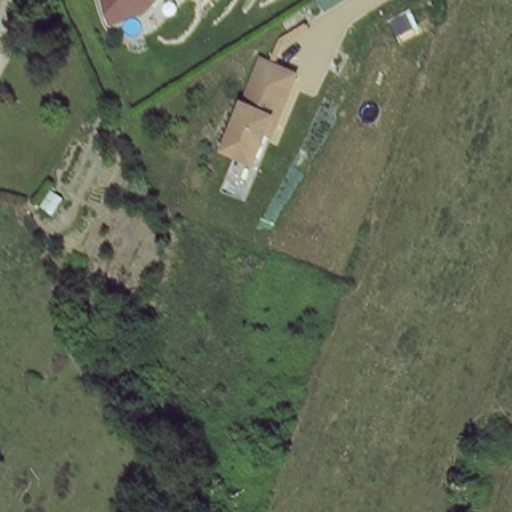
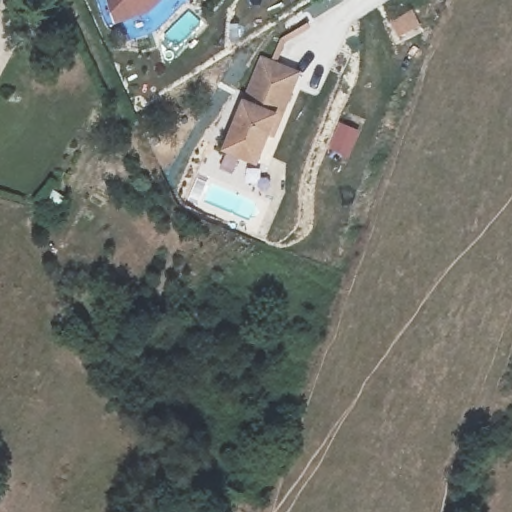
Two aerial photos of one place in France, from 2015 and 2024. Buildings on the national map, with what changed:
unchanged [(100,30),(93,0),(160,0),(133,22),(100,30)]
unchanged [(263,135),(248,164),(218,150),(263,60),(298,79),(268,136),(263,135)]

